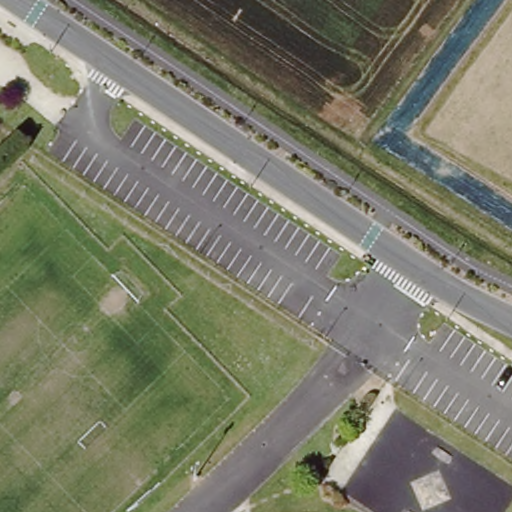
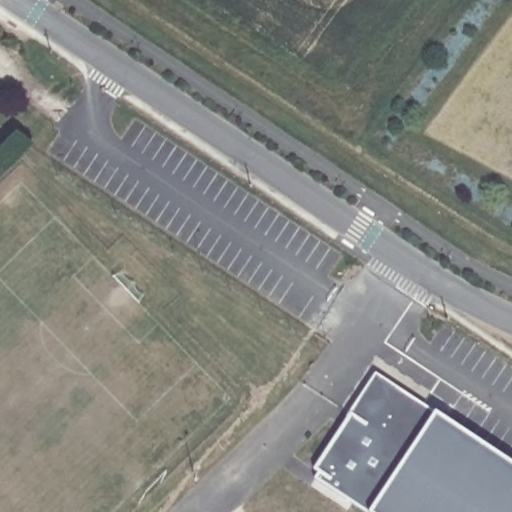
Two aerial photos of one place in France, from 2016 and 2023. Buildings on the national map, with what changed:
new [(375,374),(434,412),(512,463),(512,512),(365,512),(314,478),(318,472),(314,470),(375,374)]

